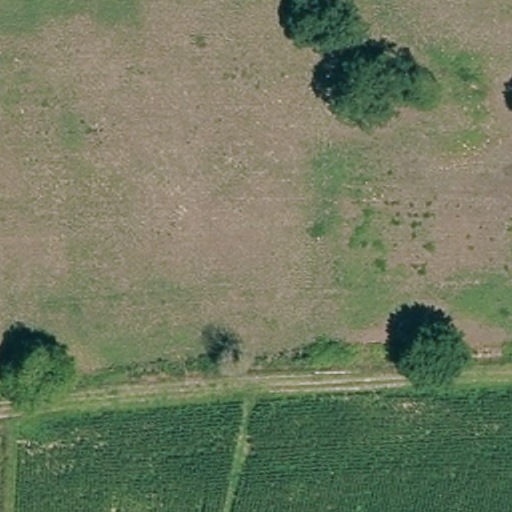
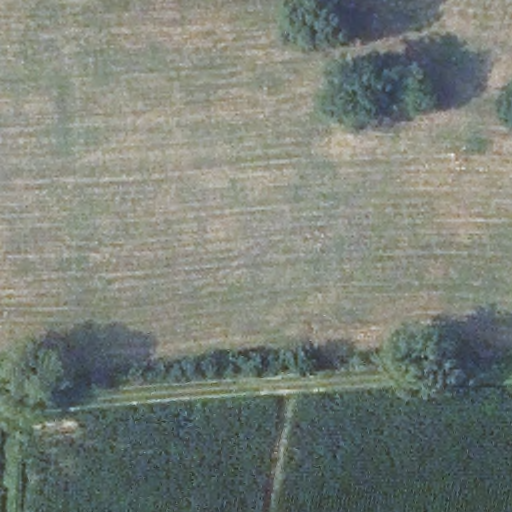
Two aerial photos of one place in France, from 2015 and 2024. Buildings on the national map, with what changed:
[]

